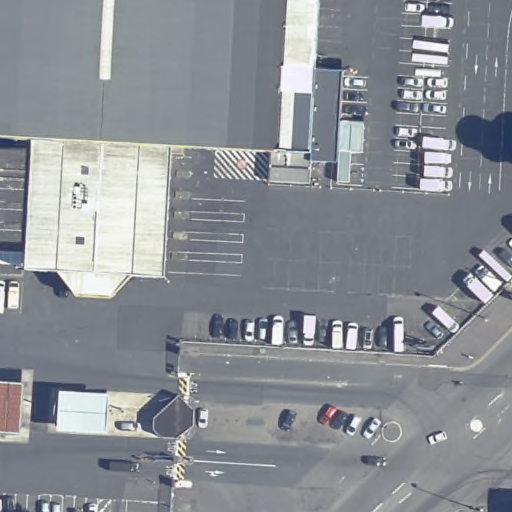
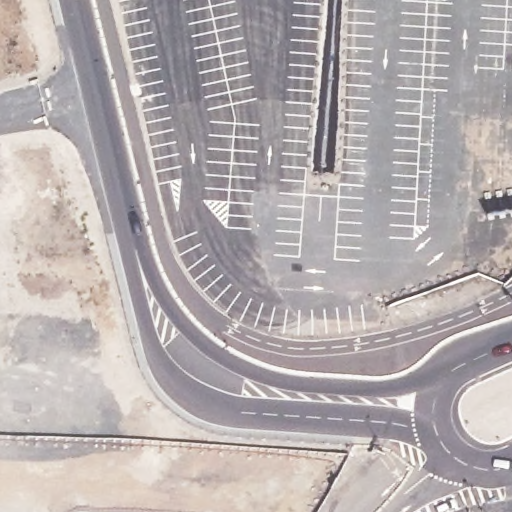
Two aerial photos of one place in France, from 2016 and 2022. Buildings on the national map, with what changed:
demolished [(166,140),(162,270),(136,269),(56,267),(28,266),(33,136),(0,135),(0,0),(283,0),(277,145),(166,140)]
demolished [(17,381),(15,438),(0,434),(0,380),(17,381)]
demolished [(62,394),(110,396),(109,435),(61,432),(62,394)]
demolished [(196,407),(195,424),(175,438),(169,437),(161,435),(156,430),(153,425),(155,418),(180,396),(196,407)]

